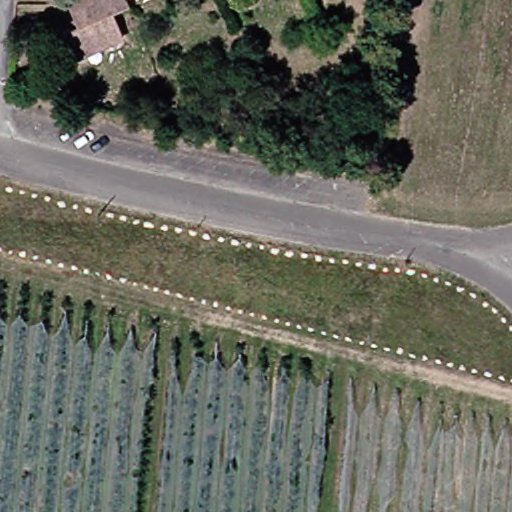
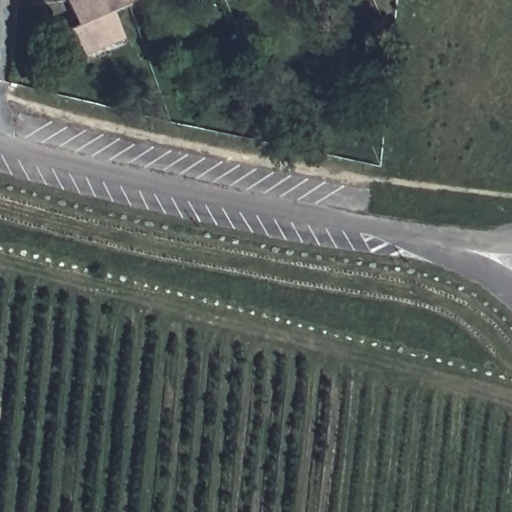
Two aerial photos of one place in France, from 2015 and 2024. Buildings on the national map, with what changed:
unchanged [(107,16),(117,40),(67,61),(56,35),(72,29),(62,4),(71,0),(121,0),(125,8),(107,16)]

